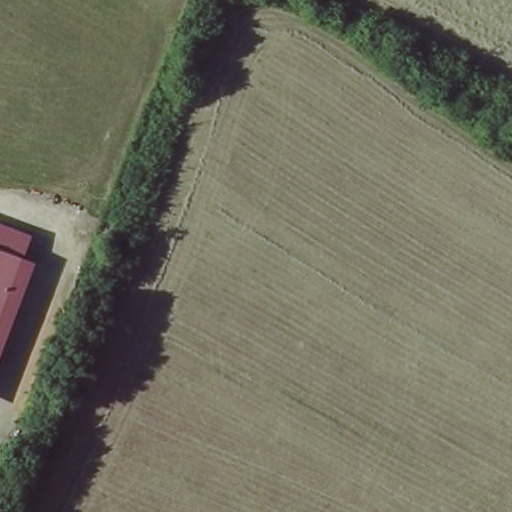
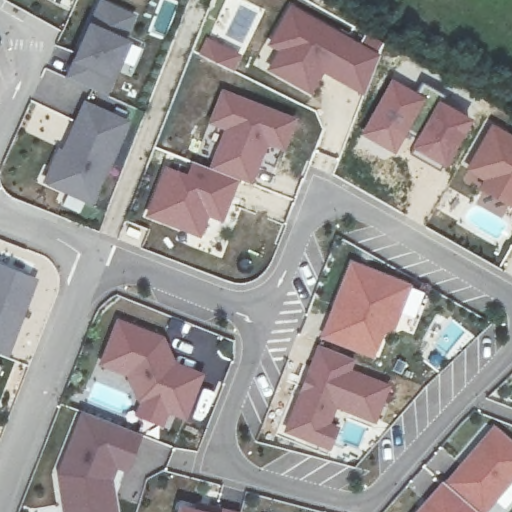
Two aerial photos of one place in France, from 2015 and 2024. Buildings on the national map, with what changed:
new [(134,30),(139,31),(115,88),(74,70),(87,43),(81,39),(100,0),(122,0),(143,10),(134,30)]
new [(385,46),(365,92),(326,75),(317,95),(271,74),(283,49),(274,45),(295,3),(385,46)]
new [(391,78),(426,96),(395,154),(360,135),(391,78)]
new [(303,114),(292,144),(275,139),(258,179),(246,174),(234,219),(213,213),(206,239),(149,219),(173,164),(195,172),(200,159),(217,164),(230,129),(214,123),(227,86),(303,114)]
new [(91,95),(136,119),(98,202),(51,176),(91,95)]
new [(437,99),(473,119),(446,169),(410,148),(437,99)]
new [(512,200),(485,184),(489,178),(469,166),(497,121),(512,130),(512,200)]
demolished [(29,256),(0,338),(0,241),(29,256)]
new [(415,282),(384,358),(325,334),(357,259),(415,282)]
new [(39,278),(9,359),(0,355),(0,262),(39,278)]
new [(169,334),(180,360),(210,370),(194,424),(146,409),(136,374),(104,362),(123,315),(169,334)]
new [(316,344),(355,359),(352,369),(390,384),(376,426),(336,410),(332,423),(340,426),(331,452),(279,432),(316,344)]
new [(1,367),(0,369),(0,366),(1,367)]
new [(149,431),(134,470),(122,466),(117,479),(118,512),(64,512),(60,469),(87,407),(149,431)]
new [(512,487),(490,512),(415,512),(498,422),(512,433),(512,487)]
new [(238,512),(186,512),(190,498),(238,512)]

